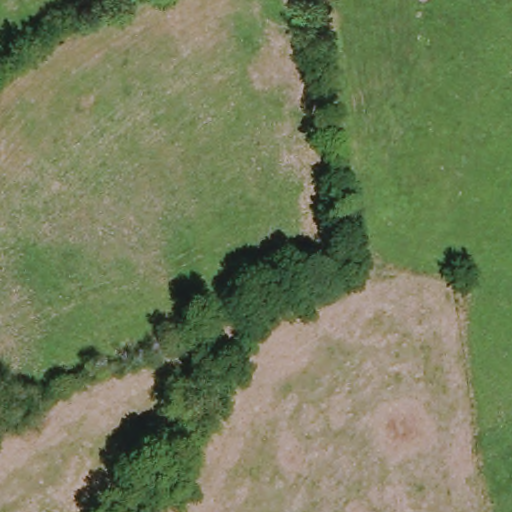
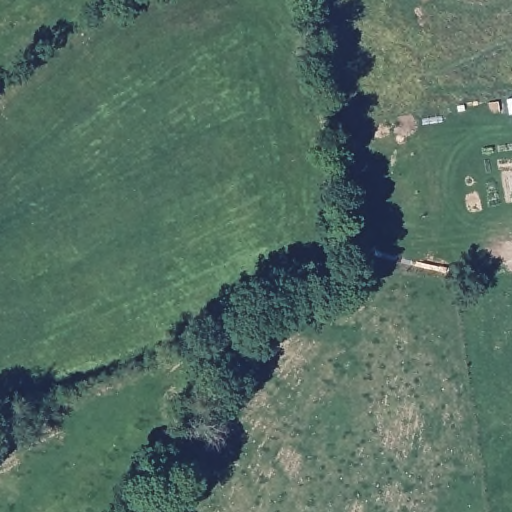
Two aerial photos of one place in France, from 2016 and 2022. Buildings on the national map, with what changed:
[]

